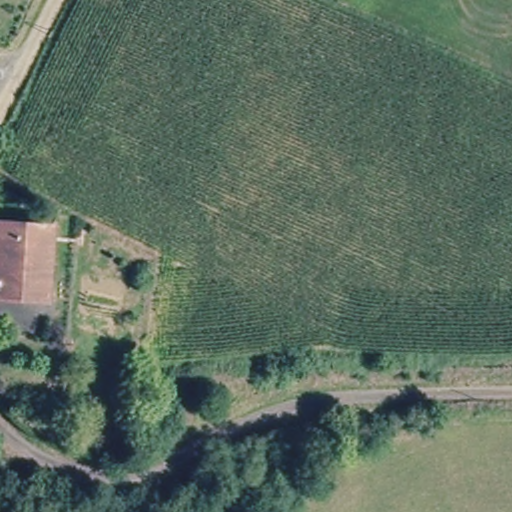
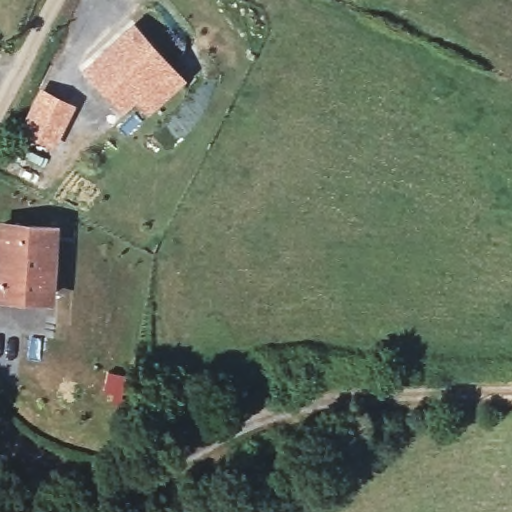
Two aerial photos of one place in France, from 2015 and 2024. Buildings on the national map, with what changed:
new [(185,79),(146,115),(134,100),(120,110),(80,70),(133,20),(185,79)]
new [(41,89),(71,103),(54,139),(25,126),(41,89)]
unchanged [(0,226),(48,226),(49,299),(0,299),(0,226)]

